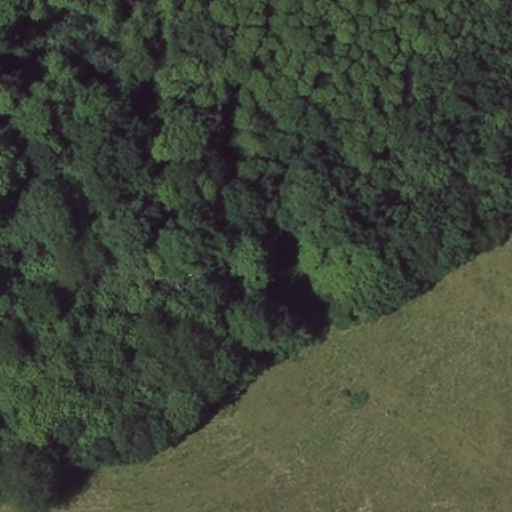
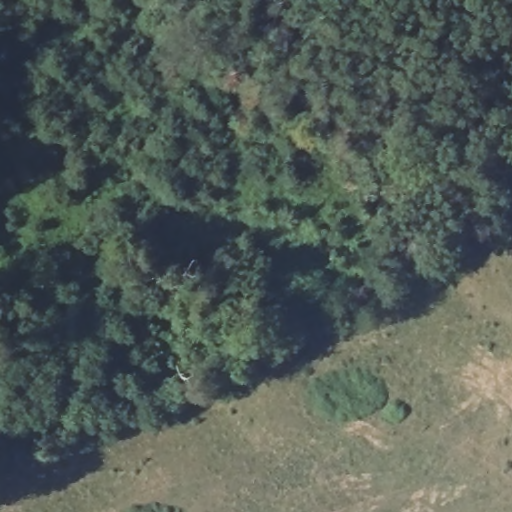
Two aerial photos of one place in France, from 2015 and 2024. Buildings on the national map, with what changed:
[]

